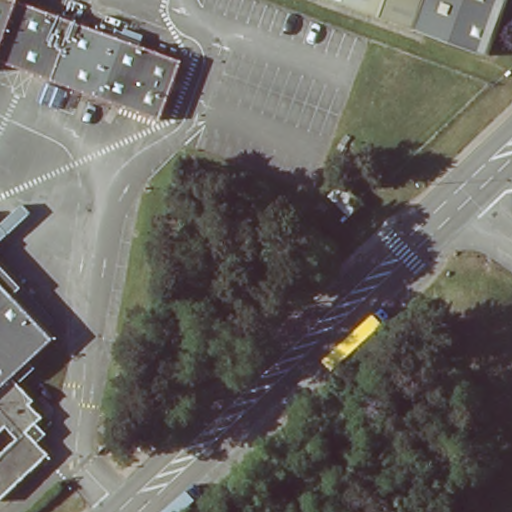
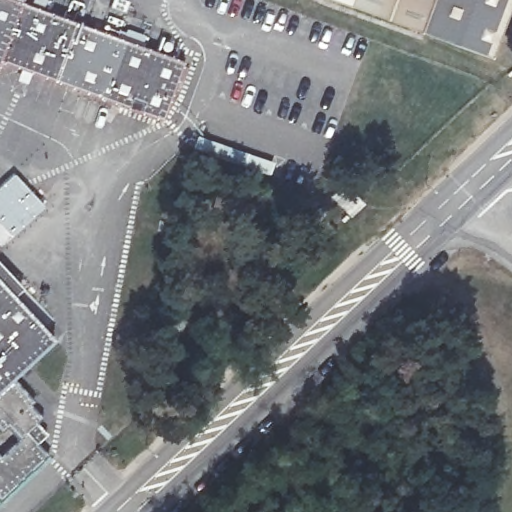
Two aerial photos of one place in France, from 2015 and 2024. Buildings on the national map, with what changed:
unchanged [(0,61),(0,0),(17,0),(106,32),(110,24),(140,35),(136,44),(180,60),(159,120),(0,61)]
unchanged [(351,2),(343,0),(351,0),(351,2)]
unchanged [(351,2),(351,0),(510,0),(491,54),(351,2)]
new [(0,240),(0,186),(15,173),(47,205),(0,240)]
unchanged [(352,215),(332,195),(346,182),(365,203),(352,215)]
unchanged [(9,377),(31,400),(27,403),(40,417),(33,423),(43,433),(34,442),(45,455),(0,497),(0,451),(13,438),(2,427),(0,429),(0,284),(51,338),(9,377)]

